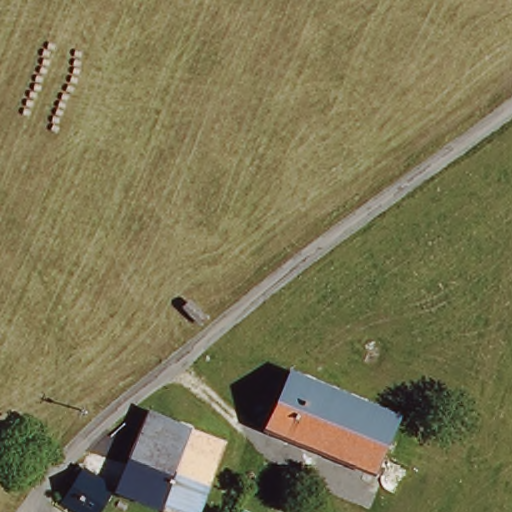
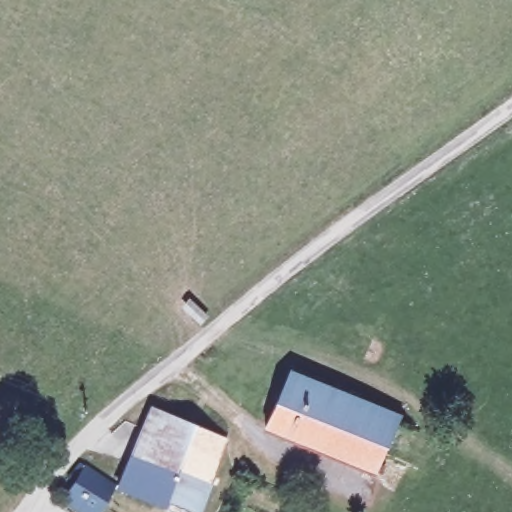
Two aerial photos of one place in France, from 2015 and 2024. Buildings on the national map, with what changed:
unchanged [(403,407),(380,465),(273,423),(297,366),(403,407)]
unchanged [(235,440),(205,512),(189,512),(128,486),(141,456),(111,445),(132,422),(152,430),(160,412),(235,440)]
unchanged [(121,480),(103,512),(88,512),(72,502),(83,481),(78,478),(88,465),(121,480)]

